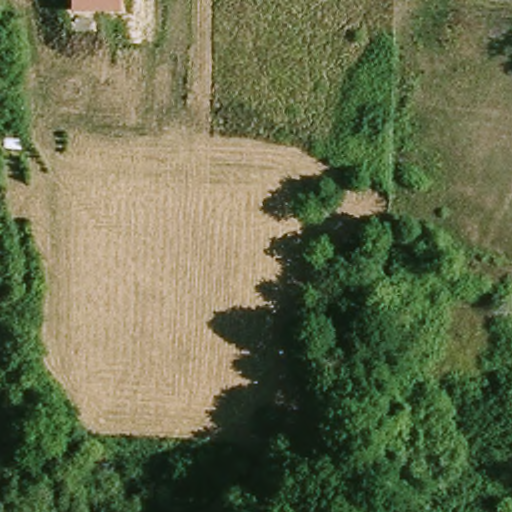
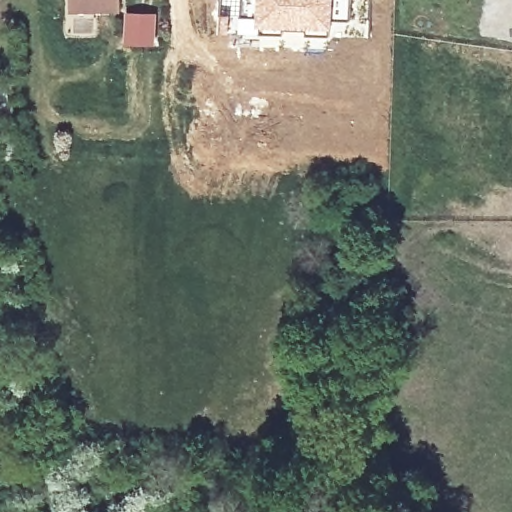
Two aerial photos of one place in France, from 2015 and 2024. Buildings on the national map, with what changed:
unchanged [(121,0),(121,11),(71,11),(71,0),(121,0)]
new [(333,0),(330,33),(258,31),(258,0),(333,0)]
new [(124,11),(157,13),(156,46),(123,46),(124,11)]

